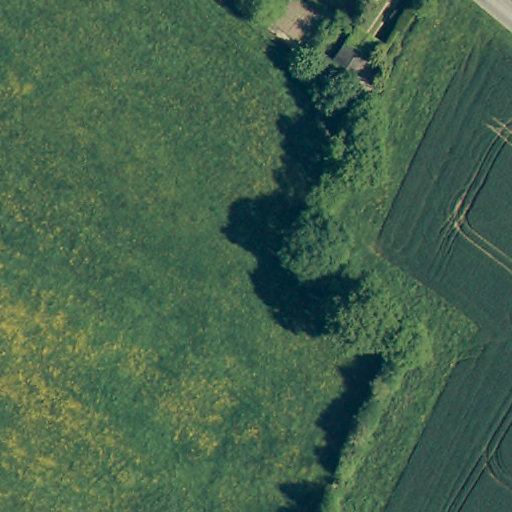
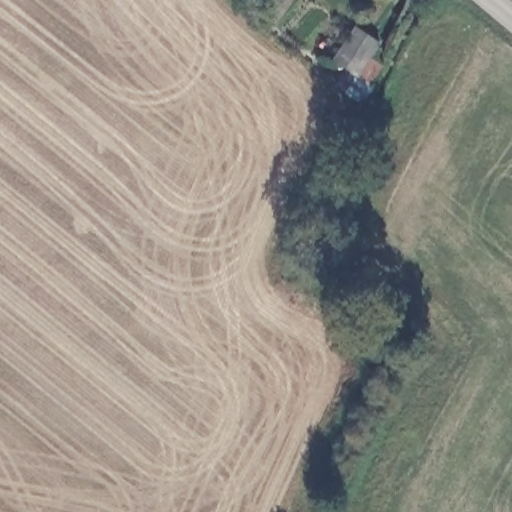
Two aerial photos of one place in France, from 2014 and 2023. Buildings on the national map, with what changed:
unchanged [(380,41),(355,75),(333,59),(358,25),(380,41)]

